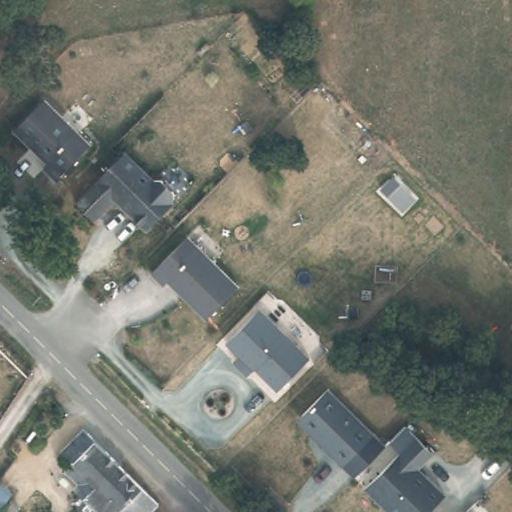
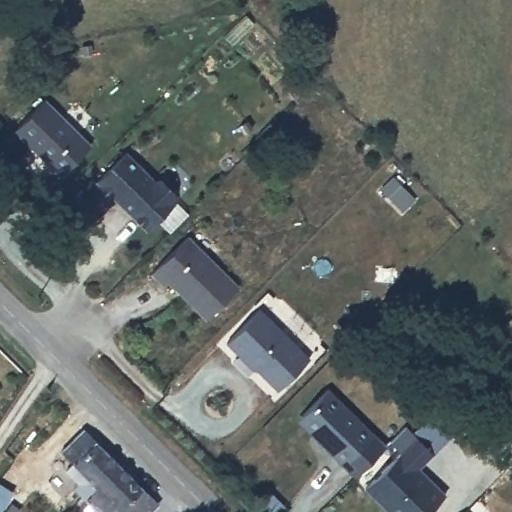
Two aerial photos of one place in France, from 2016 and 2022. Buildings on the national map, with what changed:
unchanged [(55,177),(44,164),(47,160),(37,150),(37,144),(34,141),(31,143),(14,127),(45,96),(90,141),(55,177)]
unchanged [(76,199),(97,178),(125,149),(153,176),(161,176),(174,189),(174,197),(175,198),(147,227),(115,195),(94,217),(76,199)]
unchanged [(239,288),(206,321),(167,283),(164,287),(151,275),(188,238),(239,288)]
unchanged [(240,358),(226,345),(260,311),(310,360),(295,374),(277,392),(264,379),(255,370),(254,372),(240,358)]
unchanged [(370,437),(338,468),(315,445),(317,443),(298,424),(298,416),(323,391),(370,437)]
unchanged [(417,465),(445,493),(426,512),(399,512),(393,506),(393,499),(380,500),(365,485),(400,450),(389,439),(405,423),(432,450),(417,465)]
unchanged [(55,456),(81,426),(121,466),(81,511),(81,512),(79,512),(65,499),(74,489),(56,475),(65,465),(55,456)]
unchanged [(121,466),(160,504),(153,512),(83,512),(81,511),(121,466)]
unchanged [(4,512),(0,512),(0,493),(11,500),(4,512)]
unchanged [(466,512),(463,512),(465,511),(466,512)]

